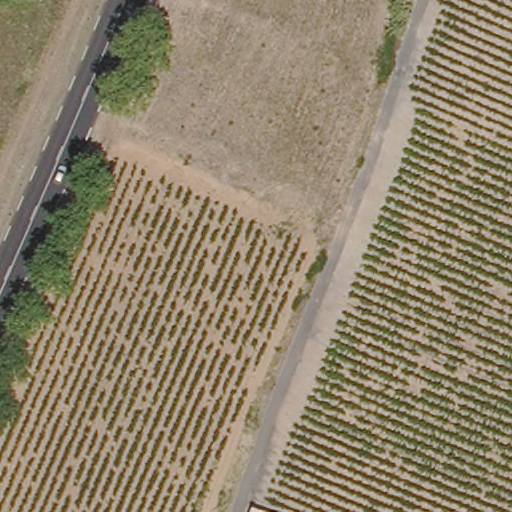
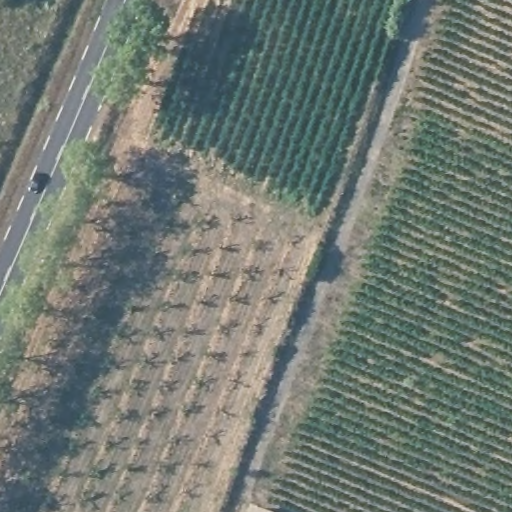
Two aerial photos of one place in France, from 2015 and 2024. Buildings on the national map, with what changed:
unchanged [(251,512),(254,505),(276,512),(251,512)]

